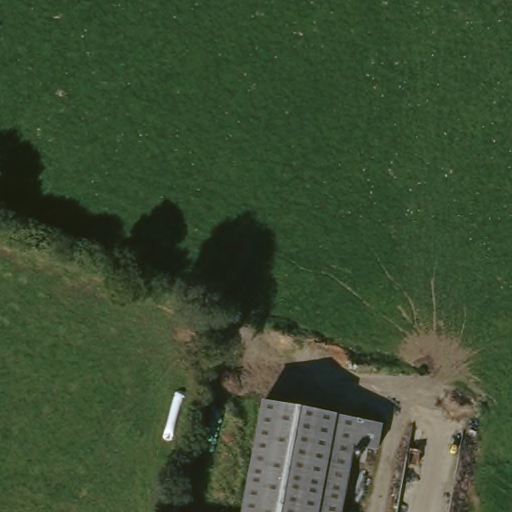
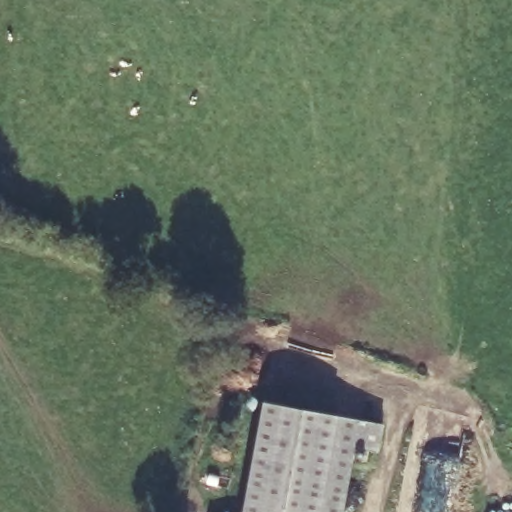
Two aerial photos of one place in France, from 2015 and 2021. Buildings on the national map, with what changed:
unchanged [(239,512),(260,406),(355,425),(336,512),(239,512)]

